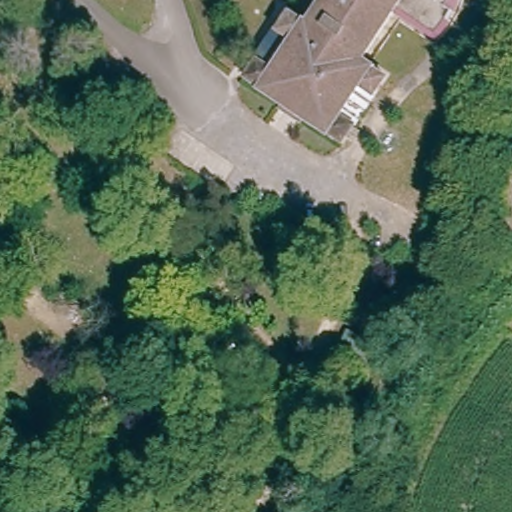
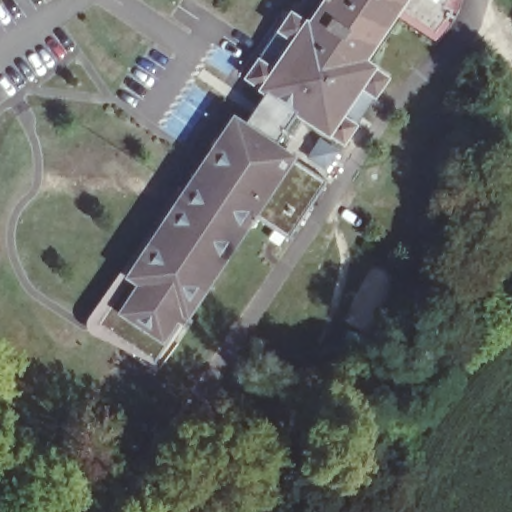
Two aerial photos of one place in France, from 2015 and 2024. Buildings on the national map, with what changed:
unchanged [(285,12),(302,25),(318,0),(441,0),(440,5),(447,10),(430,34),(392,9),(356,60),(383,77),(370,96),(366,95),(347,122),(350,125),(336,144),(240,78),(285,12)]
new [(288,236),(256,214),(181,325),(176,322),(161,343),(151,358),(98,322),(129,280),(125,277),(232,112),(244,120),(263,94),(295,115),(277,143),(295,156),(293,160),(324,181),(288,236)]
unchanged [(203,441),(245,463),(233,485),(190,463),(203,441)]

